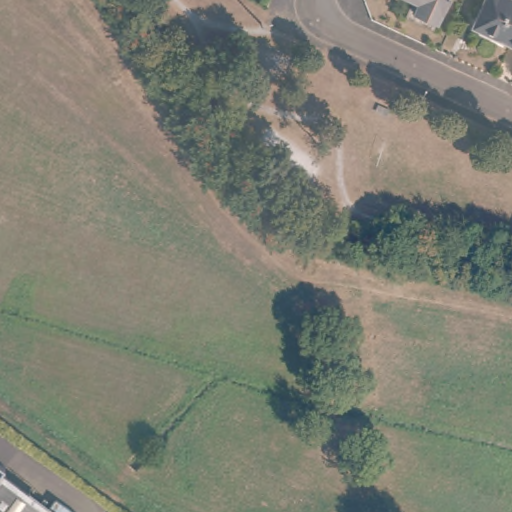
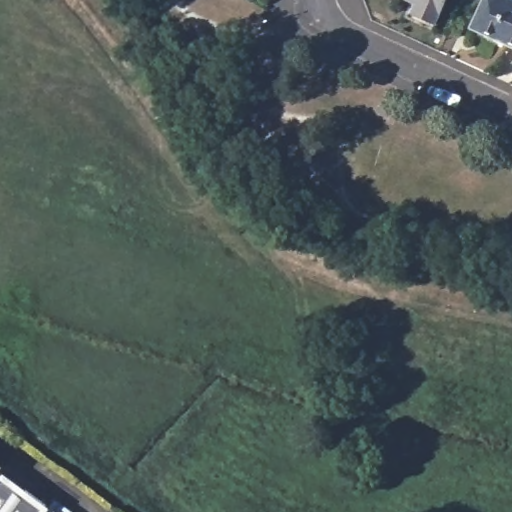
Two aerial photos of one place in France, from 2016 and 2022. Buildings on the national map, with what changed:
unchanged [(440,25),(418,14),(423,5),(414,0),(452,0),(440,25)]
unchanged [(512,5),(512,46),(475,28),(488,0),(500,0),(512,5)]
unchanged [(0,512),(0,477),(49,512),(0,512)]

